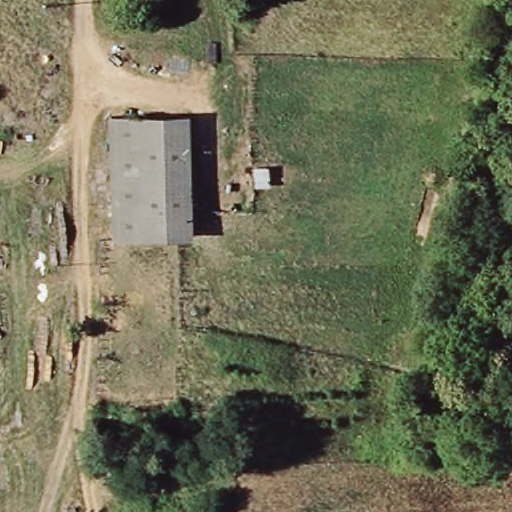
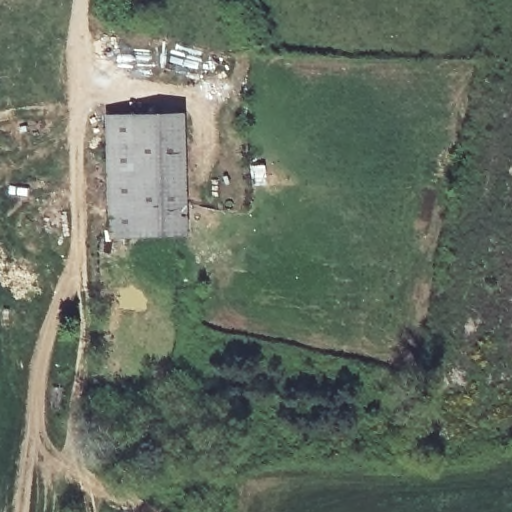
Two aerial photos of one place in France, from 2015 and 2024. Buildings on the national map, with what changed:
unchanged [(112,116),(184,115),(186,237),(161,237),(112,238),(112,116)]

